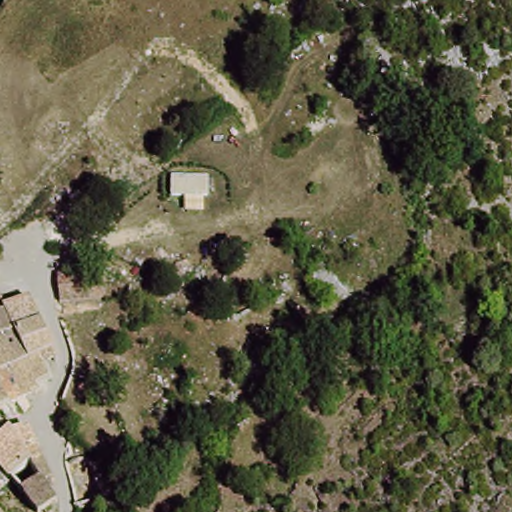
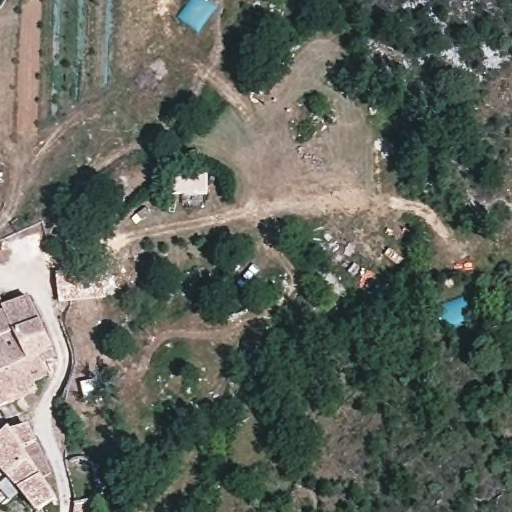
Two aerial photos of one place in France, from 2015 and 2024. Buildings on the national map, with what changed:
unchanged [(105,275),(109,302),(65,307),(61,281),(105,275)]
unchanged [(20,401),(18,402),(6,407),(4,409),(0,413),(0,293),(3,297),(25,288),(33,301),(54,349),(45,355),(38,361),(44,375),(41,378),(36,381),(31,385),(35,396),(23,400),(20,401)]
unchanged [(15,444),(21,449),(32,445),(58,477),(48,484),(33,466),(10,484),(0,493),(0,455),(5,452),(15,444)]
unchanged [(48,484),(68,506),(62,511),(61,512),(46,512),(10,484),(33,466),(48,484)]
unchanged [(0,512),(0,510),(3,512),(0,512)]

